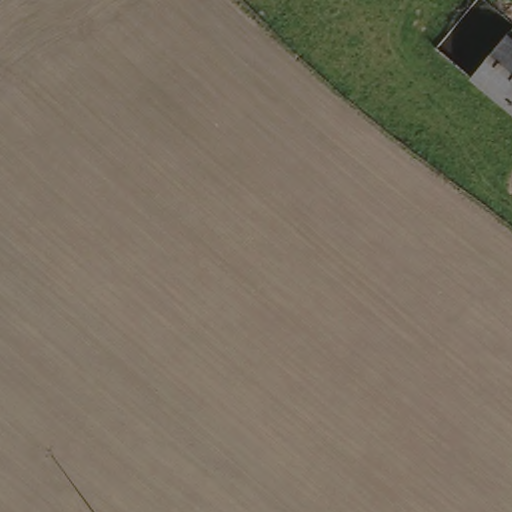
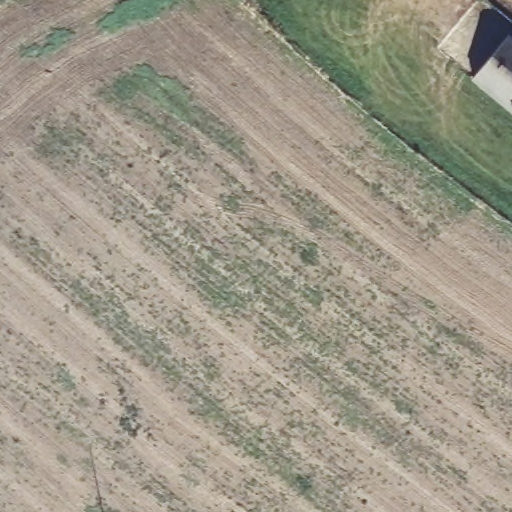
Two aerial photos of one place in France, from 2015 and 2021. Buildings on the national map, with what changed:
unchanged [(509,30),(512,32),(512,106),(474,74),(509,30)]

